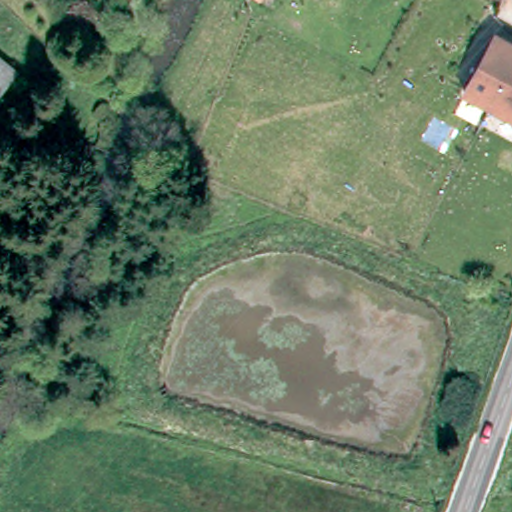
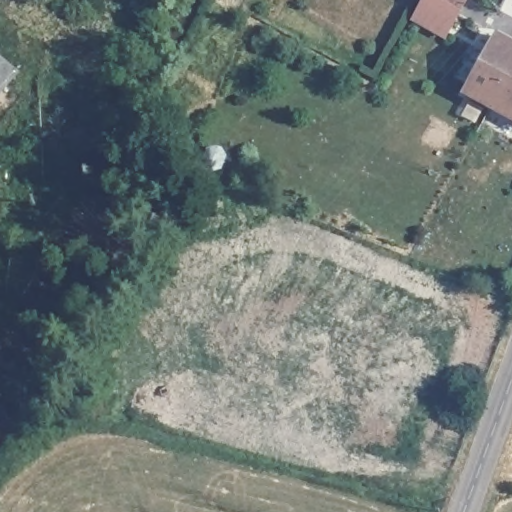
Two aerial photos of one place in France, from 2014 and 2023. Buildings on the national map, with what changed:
new [(409,19),(420,0),(462,0),(440,38),(409,19)]
unchanged [(496,26),(512,35),(512,109),(465,83),(496,26)]
unchanged [(0,87),(0,64),(12,75),(0,87)]

